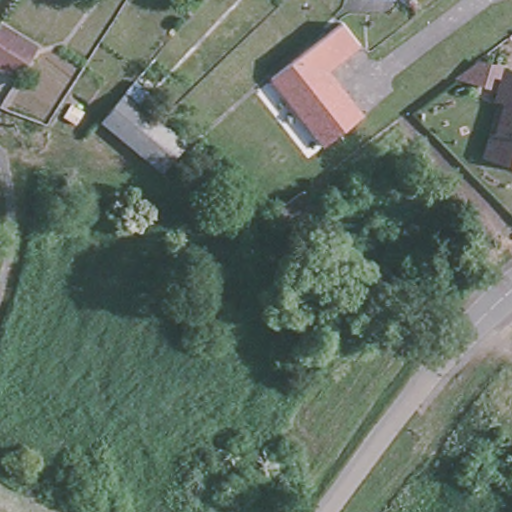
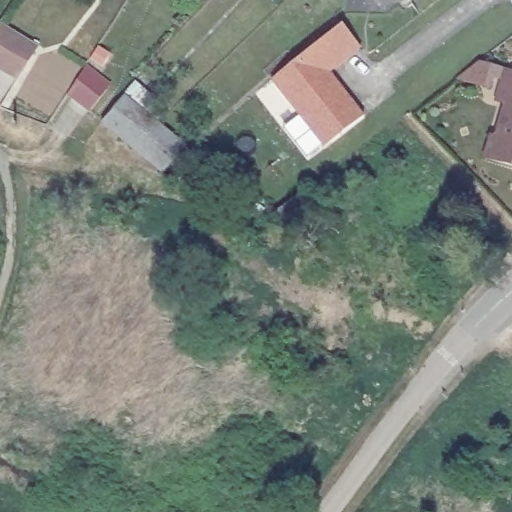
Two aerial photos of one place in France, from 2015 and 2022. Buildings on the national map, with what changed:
unchanged [(274,73),(345,20),(364,43),(334,65),(341,74),(300,106),(274,73)]
unchanged [(35,48),(16,80),(0,70),(0,27),(35,48)]
unchanged [(492,141),(501,105),(493,102),(501,73),(512,76),(512,169),(494,164),(482,161),(488,141),(492,141)]
unchanged [(300,106),(341,74),(350,86),(356,94),(369,111),(327,142),(300,106)]
unchanged [(104,121),(121,100),(124,97),(132,88),(153,106),(145,116),(143,118),(181,150),(167,168),(161,176),(100,126),(104,121)]
unchanged [(313,210),(286,230),(269,215),(299,193),(313,210)]
unchanged [(468,244),(452,257),(432,232),(449,219),(468,244)]

